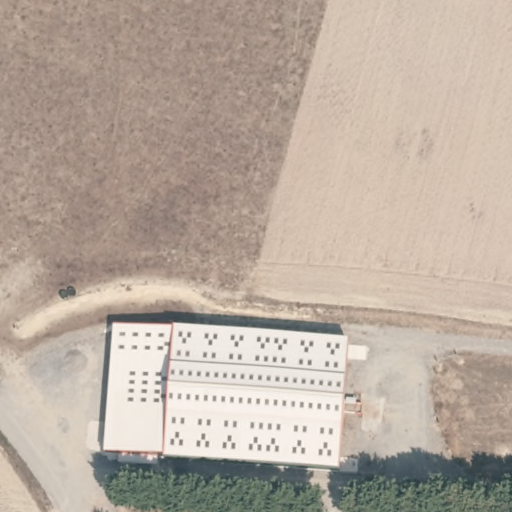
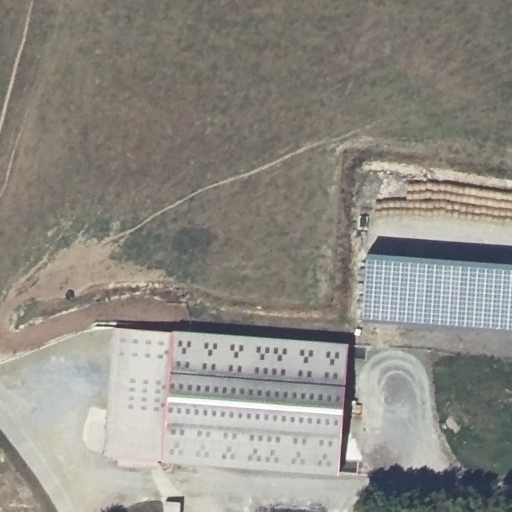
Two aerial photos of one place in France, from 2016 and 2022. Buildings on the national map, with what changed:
new [(362,319),(367,252),(512,264),(512,332),(362,319)]
unchanged [(340,472),(165,460),(104,453),(114,327),(177,330),(348,343),(340,472)]

